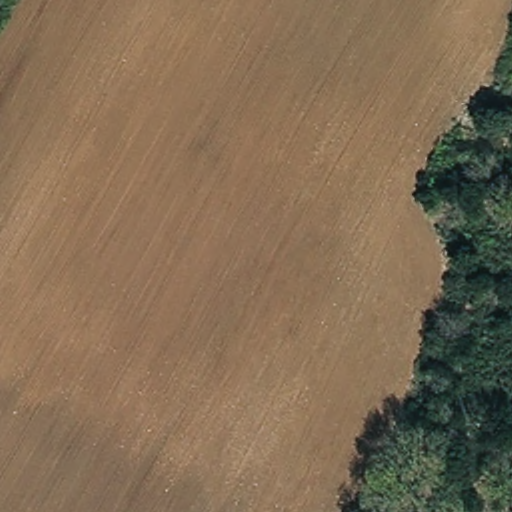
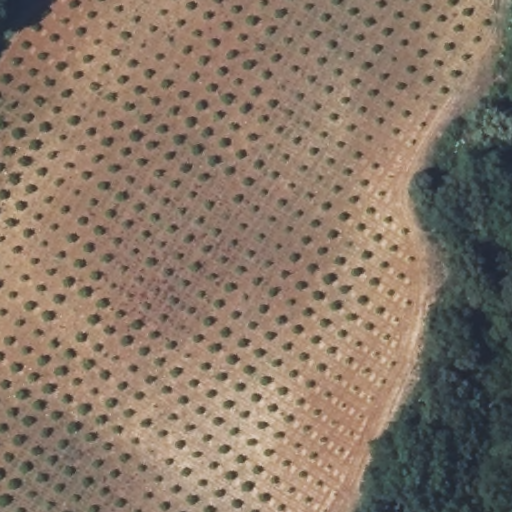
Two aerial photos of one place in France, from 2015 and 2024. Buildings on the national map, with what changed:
[]

